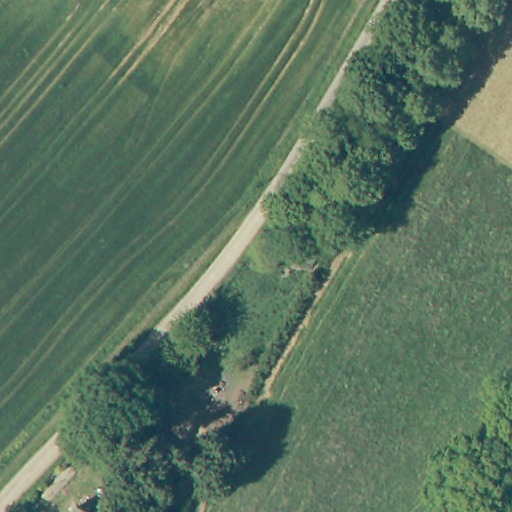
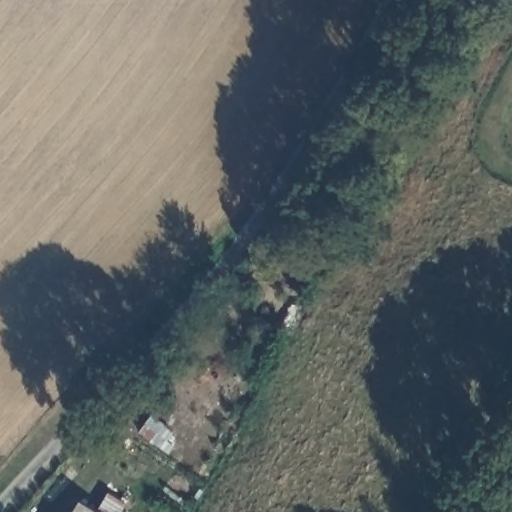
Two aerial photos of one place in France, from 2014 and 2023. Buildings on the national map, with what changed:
unchanged [(107,494),(124,504),(119,512),(96,512),(107,494)]
unchanged [(80,505),(90,512),(76,512),(80,505)]

